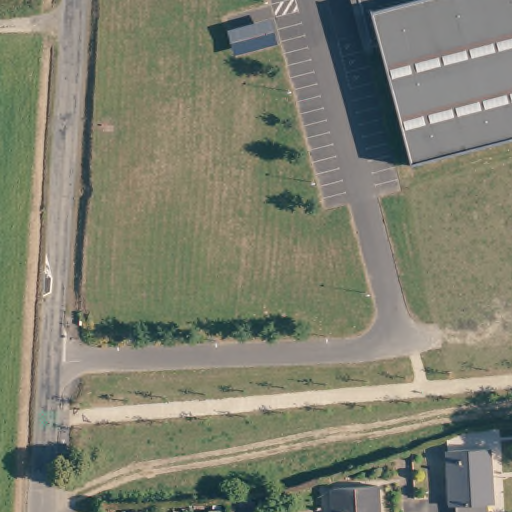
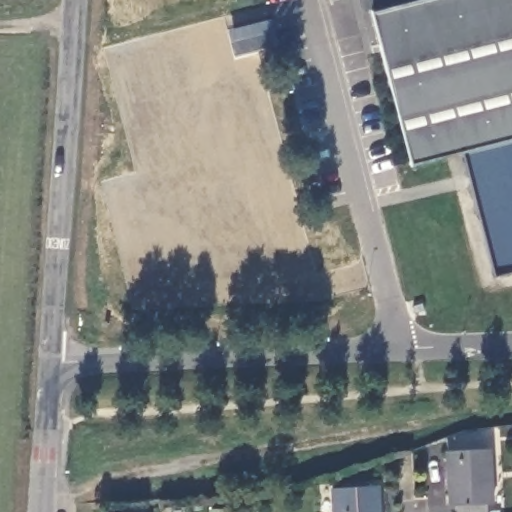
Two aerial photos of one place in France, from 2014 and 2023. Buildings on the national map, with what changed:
unchanged [(512,142),(416,171),(380,50),(371,53),(356,0),(512,0),(512,142)]
new [(462,157),(512,142),(512,270),(494,274),(462,157)]
unchanged [(449,504),(446,448),(489,446),(493,503),(487,503),(488,512),(455,512),(455,505),(449,504)]
unchanged [(384,478),(386,512),(339,512),(337,481),(384,478)]
unchanged [(240,512),(239,504),(253,503),(254,512),(240,512)]

